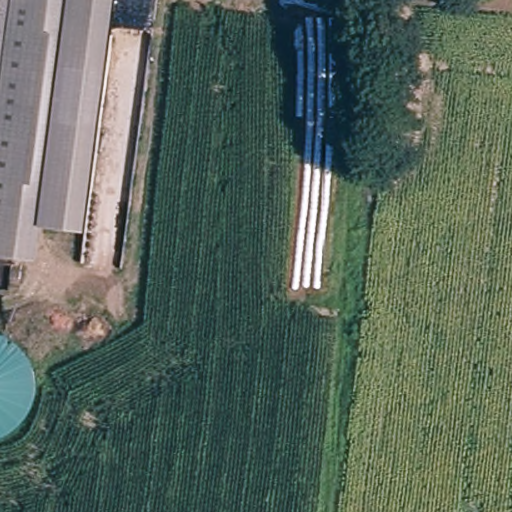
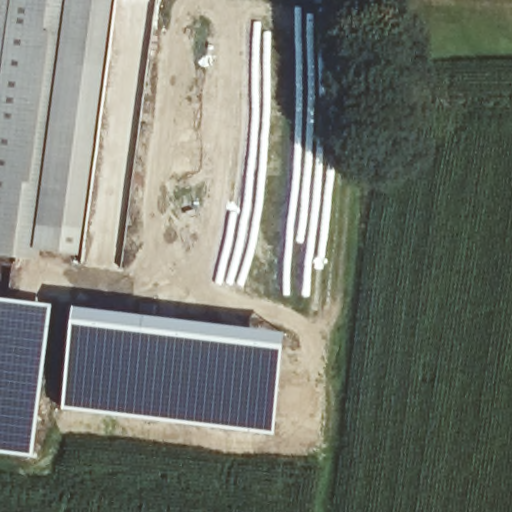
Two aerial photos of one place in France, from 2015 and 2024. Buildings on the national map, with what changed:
unchanged [(0,0),(15,0),(0,112),(0,0)]
unchanged [(0,112),(15,0),(118,0),(87,234),(50,229),(46,264),(20,260),(0,257),(0,112)]
new [(33,457),(0,452),(0,297),(54,304),(33,457)]
new [(74,305),(287,333),(274,434),(61,409),(74,305)]

